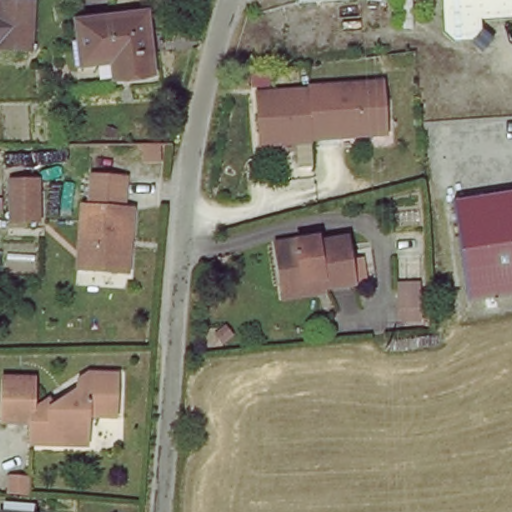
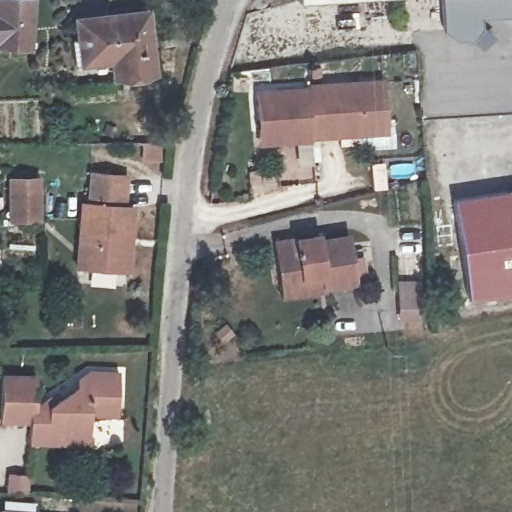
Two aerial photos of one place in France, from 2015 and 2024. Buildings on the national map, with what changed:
unchanged [(28,47),(0,46),(0,0),(32,0),(28,47)]
unchanged [(301,8),(301,0),(416,0),(301,8)]
unchanged [(508,11),(508,20),(479,21),(477,37),(468,44),(456,42),(444,35),(441,17),(432,17),(430,0),(512,0),(512,9),(508,11)]
unchanged [(78,42),(75,19),(153,8),(159,70),(119,75),(117,57),(98,60),(80,62),(78,42)]
unchanged [(261,130),(259,92),(311,90),(311,85),(385,81),(387,119),(388,135),(371,136),(314,139),(314,143),(277,145),(261,145),(261,130)]
unchanged [(129,205),(136,205),(131,264),(79,261),(85,172),(131,176),(129,205)]
unchanged [(7,220),(5,175),(39,175),(40,218),(7,220)]
unchanged [(512,190),(512,292),(471,300),(452,201),(512,190)]
unchanged [(355,291),(284,297),(280,246),(324,243),(324,247),(351,246),(355,291)]
unchanged [(422,277),(424,317),(399,317),(398,278),(422,277)]
unchanged [(73,437),(29,437),(29,410),(89,363),(116,364),(117,404),(88,405),(89,413),(88,436),(73,437)]
unchanged [(21,405),(21,426),(0,426),(0,386),(30,385),(30,398),(21,405)]

